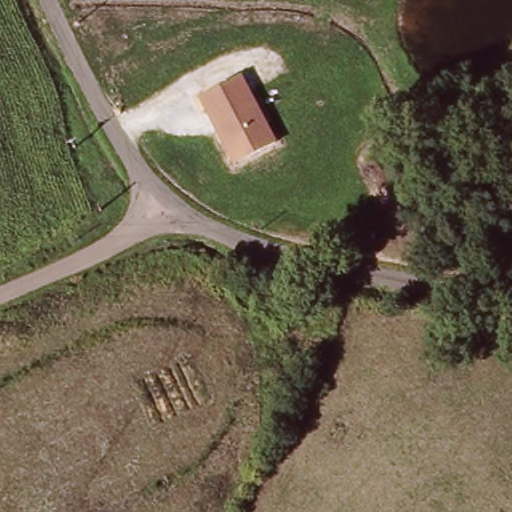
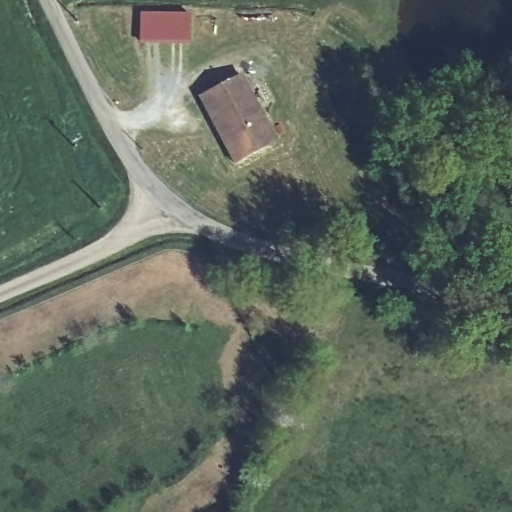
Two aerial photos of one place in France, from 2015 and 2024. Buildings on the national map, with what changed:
new [(189,46),(140,45),(140,14),(189,15),(189,46)]
unchanged [(277,140),(232,163),(197,96),(238,75),(277,140)]

